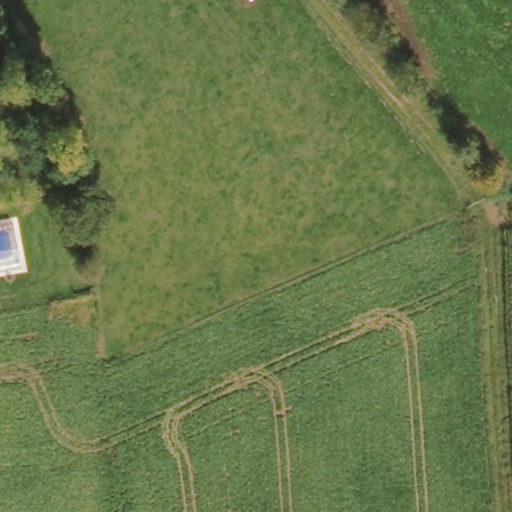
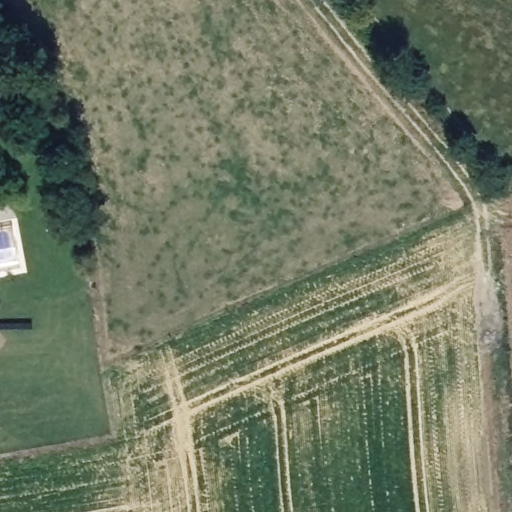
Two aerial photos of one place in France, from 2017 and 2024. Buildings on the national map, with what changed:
unchanged [(25,261),(0,266),(0,220),(16,217),(25,261)]

